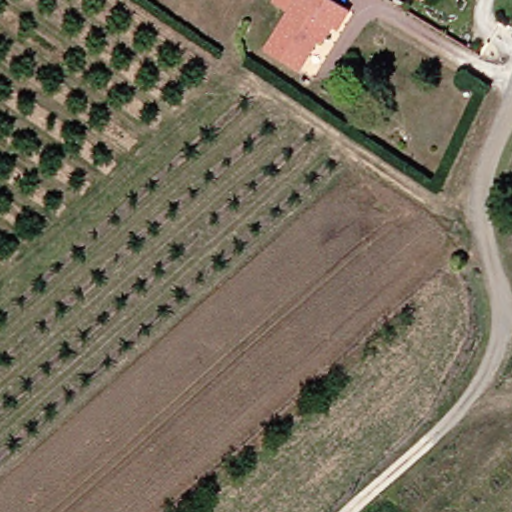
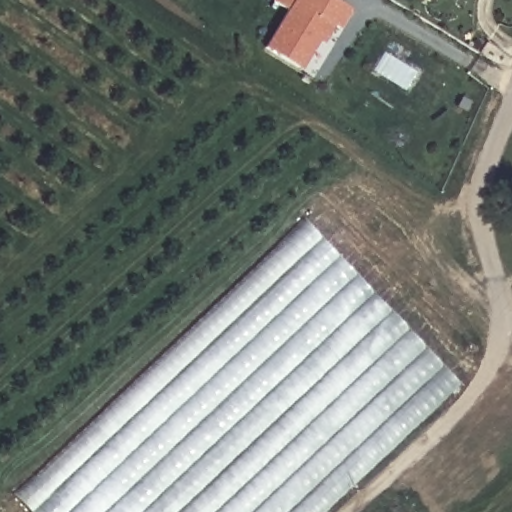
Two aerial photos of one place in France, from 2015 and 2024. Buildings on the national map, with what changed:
unchanged [(337,29),(329,23),(300,69),(265,48),(288,10),(274,1),(274,0),(332,0),(349,10),(337,29)]
unchanged [(416,0),(421,0),(420,2),(416,0)]
new [(331,512),(31,512),(17,498),(308,220),(463,388),(331,512)]

